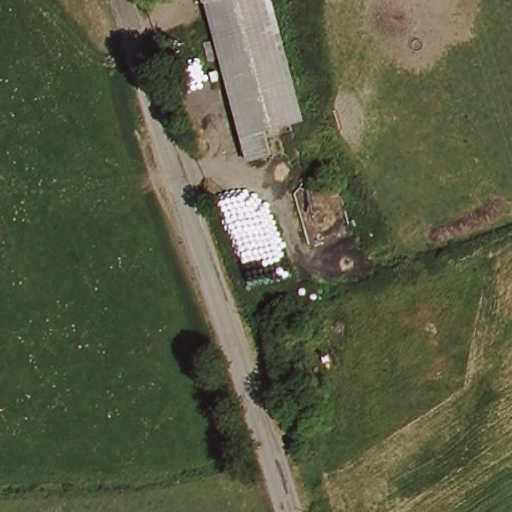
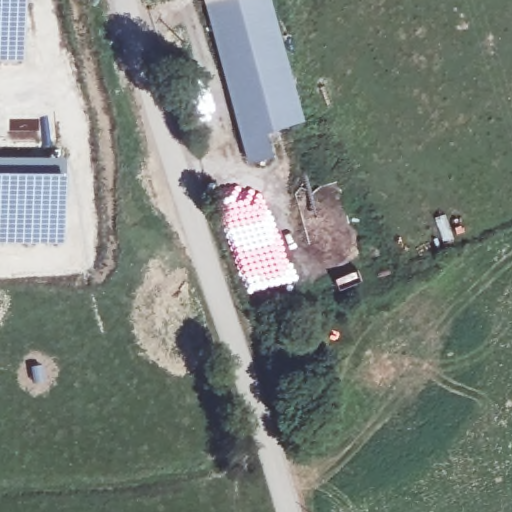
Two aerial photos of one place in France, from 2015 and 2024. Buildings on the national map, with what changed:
new [(25,0),(24,63),(0,63),(0,0),(25,0)]
unchanged [(265,133),(271,164),(247,168),(204,0),(274,0),(303,127),(265,133)]
new [(66,164),(66,247),(0,246),(0,164),(66,164)]

